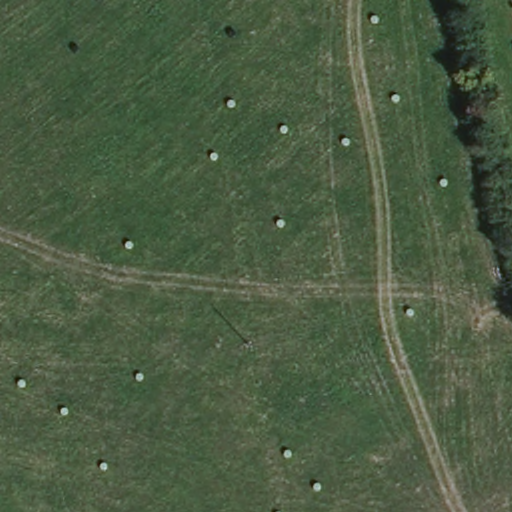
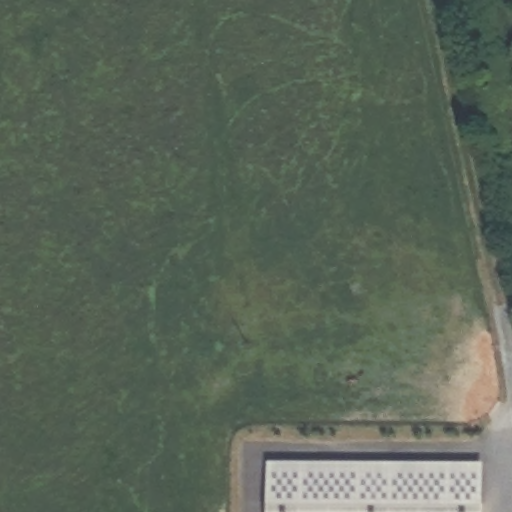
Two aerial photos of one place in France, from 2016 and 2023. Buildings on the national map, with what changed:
new [(480,512),(270,512),(269,470),(480,467),(480,512)]

